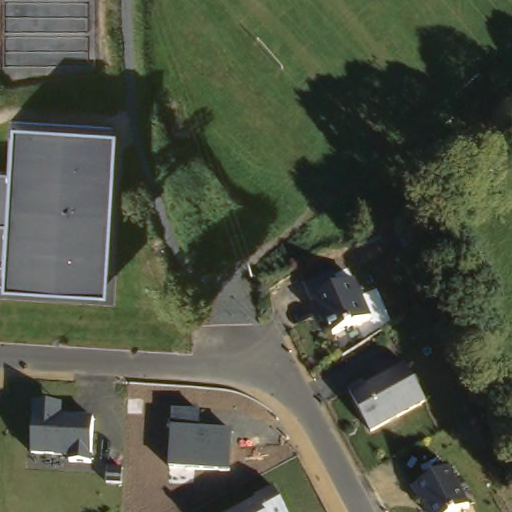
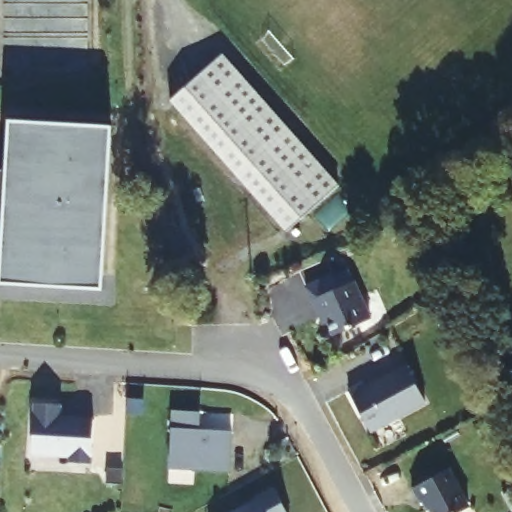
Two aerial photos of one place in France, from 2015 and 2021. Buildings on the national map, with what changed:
new [(223,54),(338,185),(284,230),(170,102),(223,54)]
unchanged [(114,125),(104,290),(1,283),(0,283),(0,168),(6,169),(10,119),(114,125)]
new [(423,213),(431,229),(418,235),(411,219),(423,213)]
unchanged [(322,316),(316,318),(302,285),(331,273),(336,287),(354,280),(370,320),(330,336),(322,316)]
unchanged [(424,404),(369,433),(346,387),(363,380),(366,382),(403,364),(424,404)]
unchanged [(64,400),(63,413),(96,415),(93,461),(68,461),(68,456),(31,453),(34,400),(64,400)]
unchanged [(202,411),(202,428),(234,430),(232,472),(169,466),(174,407),(202,411)]
unchanged [(462,512),(429,512),(413,487),(449,468),(469,509),(462,512)]
unchanged [(227,512),(271,488),(285,512),(227,512)]

